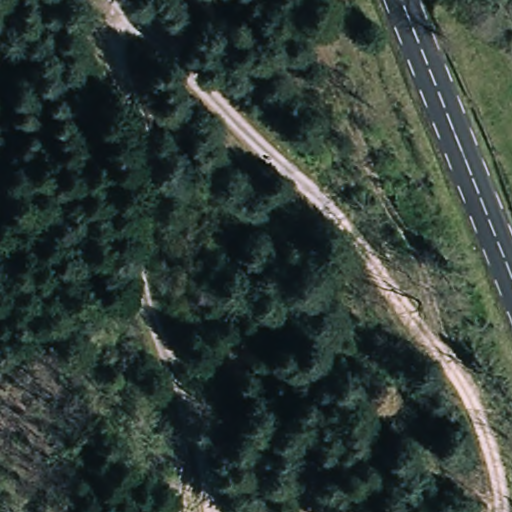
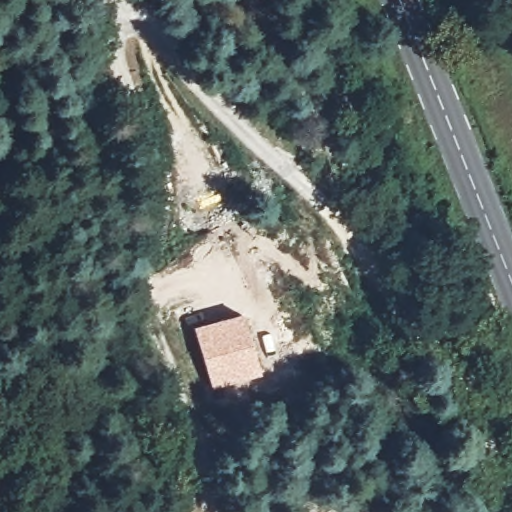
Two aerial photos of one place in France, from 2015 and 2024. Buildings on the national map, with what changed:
new [(213,388),(193,328),(241,313),(260,373),(213,388)]

